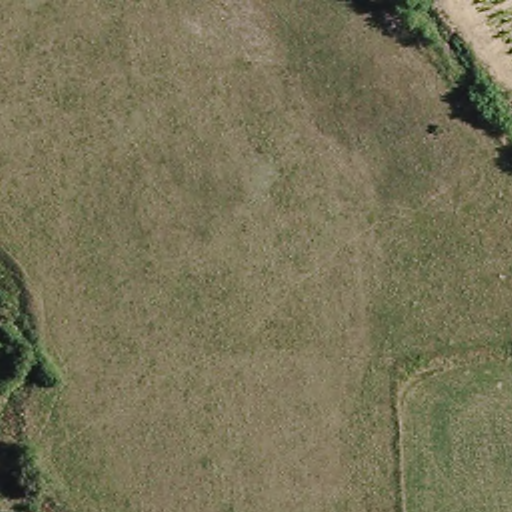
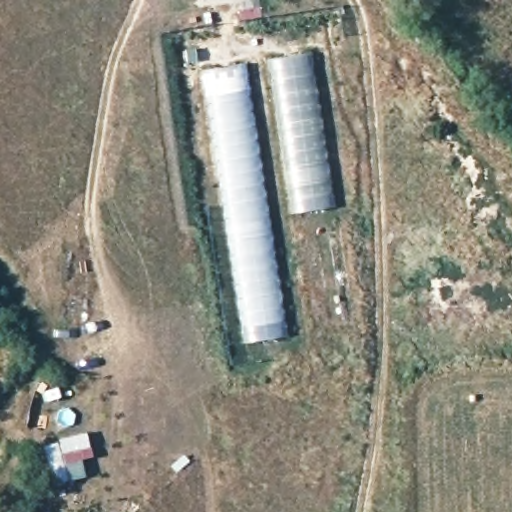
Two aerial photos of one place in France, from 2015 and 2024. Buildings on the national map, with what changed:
new [(315,52),(355,326),(309,333),(267,59),(315,52)]
new [(287,335),(244,342),(204,70),(246,64),(287,335)]
new [(91,448),(80,450),(86,476),(53,485),(43,443),(87,432),(91,448)]

